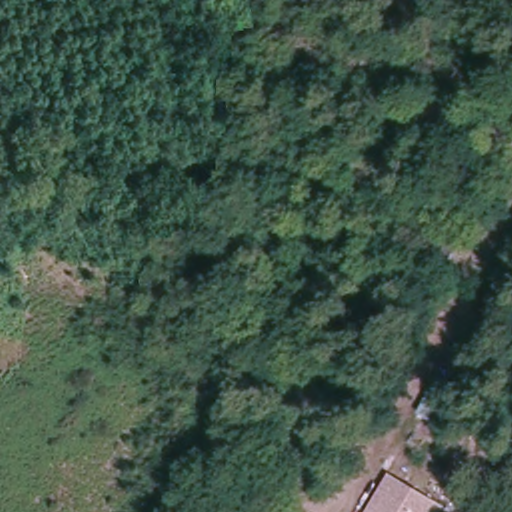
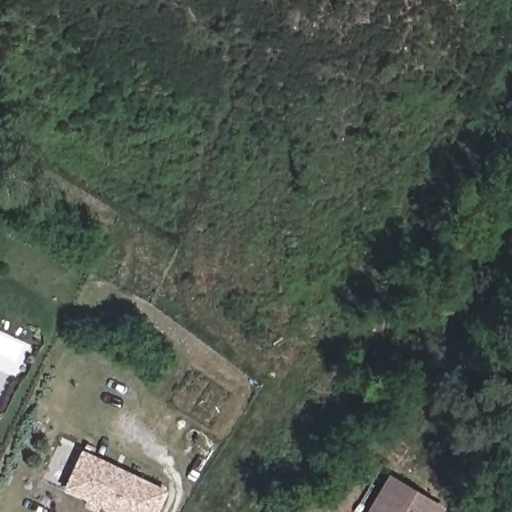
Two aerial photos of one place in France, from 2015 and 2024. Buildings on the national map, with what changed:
new [(159,512),(111,512),(64,490),(82,450),(169,491),(159,512)]
unchanged [(395,480),(437,505),(432,512),(376,512),(395,480)]
unchanged [(276,507),(284,511),(283,512),(273,512),(276,507)]

